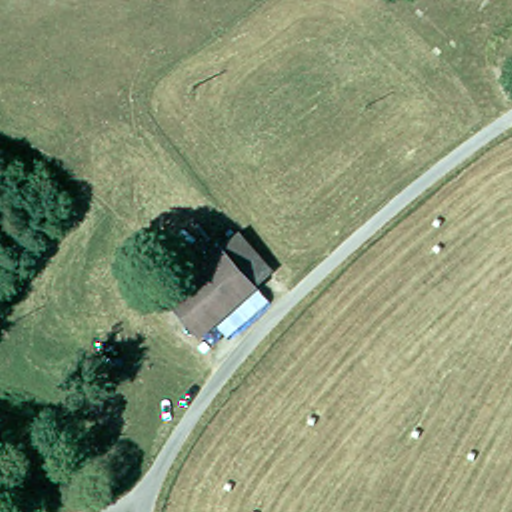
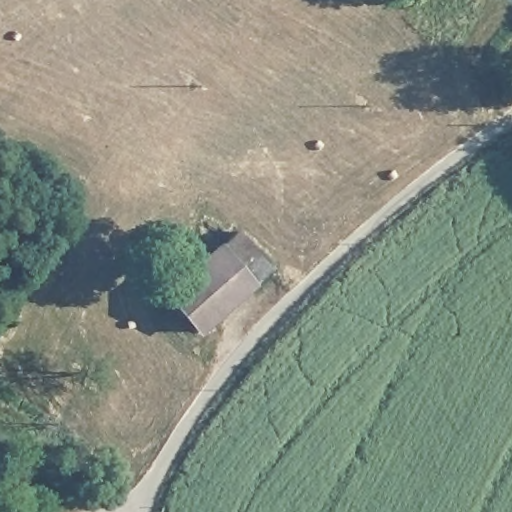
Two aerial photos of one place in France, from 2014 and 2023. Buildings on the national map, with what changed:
unchanged [(169,291),(224,245),(240,232),(272,270),(257,282),(200,328),(169,291)]

